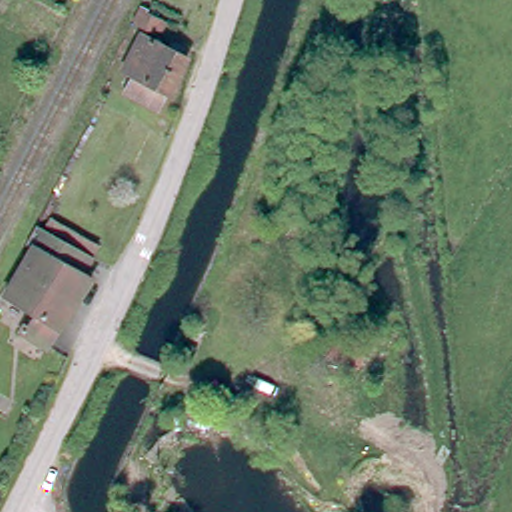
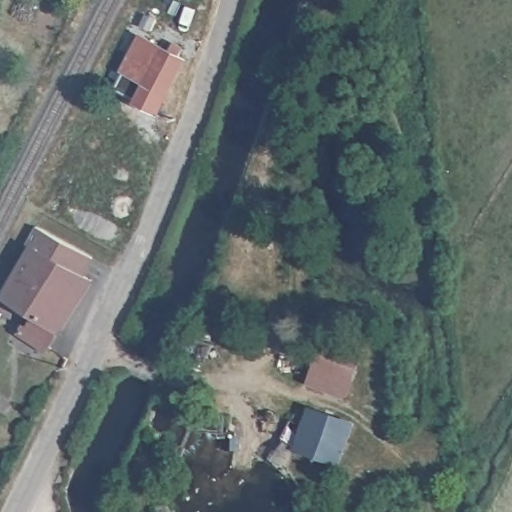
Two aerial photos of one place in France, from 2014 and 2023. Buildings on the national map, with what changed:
unchanged [(124,92),(134,75),(124,69),(142,35),(185,59),(157,110),(124,92)]
unchanged [(38,234),(43,224),(94,250),(89,260),(38,234)]
unchanged [(75,277),(85,283),(42,353),(14,336),(17,331),(20,332),(29,319),(0,301),(0,295),(27,250),(20,247),(29,230),(30,230),(84,260),(75,277)]
new [(325,337),(363,350),(347,396),(309,384),(325,337)]
new [(340,465),(294,450),(309,405),(357,421),(340,465)]

